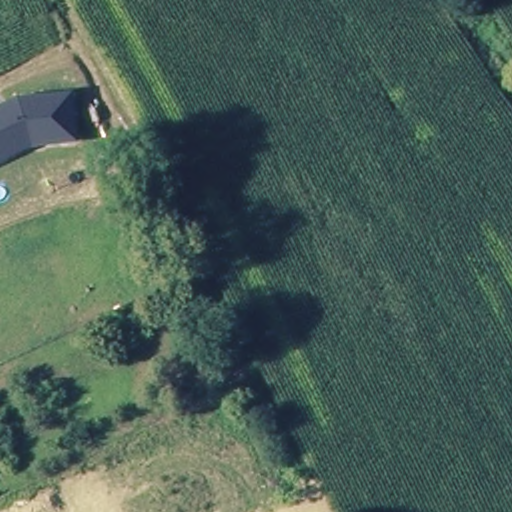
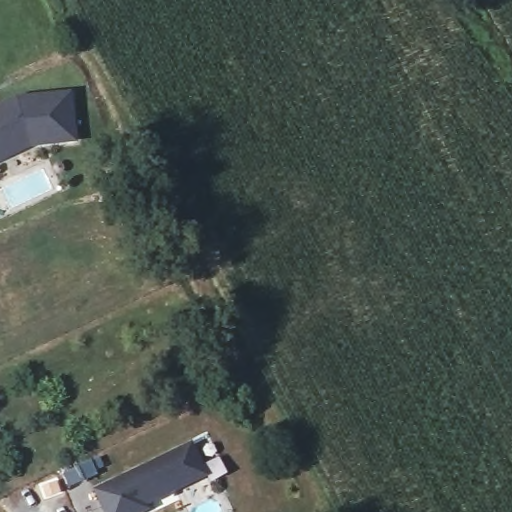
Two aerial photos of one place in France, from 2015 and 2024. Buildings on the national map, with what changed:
unchanged [(71,87),(76,138),(27,145),(0,159),(0,101),(16,92),(71,87)]
new [(194,448),(208,479),(147,507),(149,512),(106,512),(97,493),(194,448)]

